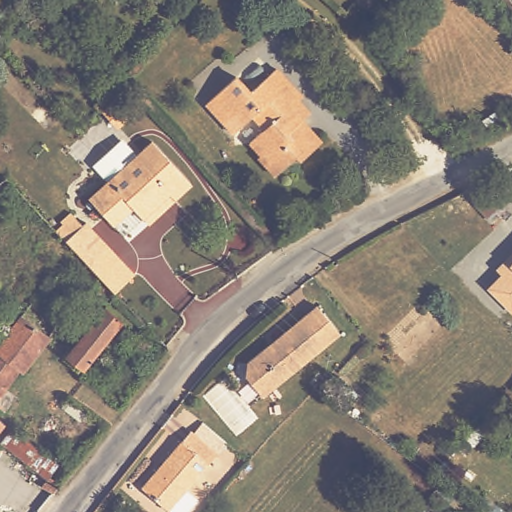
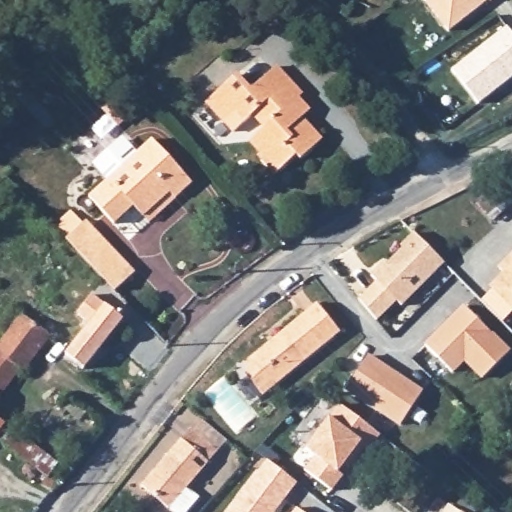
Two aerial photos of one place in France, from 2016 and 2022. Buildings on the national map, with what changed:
new [(491,1),(451,33),(425,0),(496,0),(492,3),(491,1)]
new [(508,29),(512,33),(512,80),(479,105),(453,71),(508,29)]
unchanged [(322,142),(302,161),(297,156),(277,176),(261,158),(263,155),(251,141),(265,128),(254,116),(235,133),(208,104),(237,76),(250,91),(277,69),(302,96),(299,101),(309,113),(302,119),(307,125),(322,142)]
unchanged [(90,198),(109,181),(98,169),(98,161),(120,143),(127,143),(138,155),(153,141),(193,184),(176,200),(149,224),(143,218),(124,236),(115,225),(90,198)]
unchanged [(490,215),(479,202),(493,189),(505,203),(490,215)]
unchanged [(58,232),(64,226),(61,222),(71,213),(84,225),(87,223),(135,273),(115,293),(73,249),(58,232)]
unchanged [(370,277),(381,266),(385,270),(404,250),(402,248),(415,234),(446,264),(402,307),(370,277)]
unchanged [(501,274),(496,268),(512,251),(512,309),(489,286),(501,274)]
unchanged [(264,395),(247,376),(247,361),(316,302),(340,330),(264,395)]
unchanged [(0,410),(0,339),(17,316),(18,314),(26,304),(52,324),(45,336),(47,338),(19,375),(14,372),(2,388),(11,395),(6,402),(0,410)]
unchanged [(84,371),(67,357),(105,307),(123,321),(84,371)]
new [(462,307),(510,352),(481,382),(464,364),(453,375),(424,346),(462,307)]
demolished [(433,309),(450,324),(405,368),(389,352),(433,309)]
unchanged [(140,358),(125,346),(136,332),(151,343),(140,358)]
new [(368,355),(422,391),(400,428),(344,393),(368,355)]
unchanged [(341,389),(334,382),(340,377),(347,383),(341,389)]
new [(315,459),(304,451),(327,418),(338,405),(382,437),(360,471),(350,464),(342,475),(344,477),(333,494),(303,472),(315,459)]
unchanged [(43,479),(0,444),(0,438),(5,431),(15,433),(55,464),(47,476),(57,484),(54,487),(50,492),(40,485),(43,479)]
unchanged [(186,512),(172,512),(169,510),(143,488),(191,431),(218,453),(186,490),(197,499),(186,512)]
new [(266,461),(297,485),(277,512),(228,512),(266,461)]
new [(447,506),(457,512),(443,512),(447,506)]
new [(295,509),(299,512),(293,512),(295,509)]

